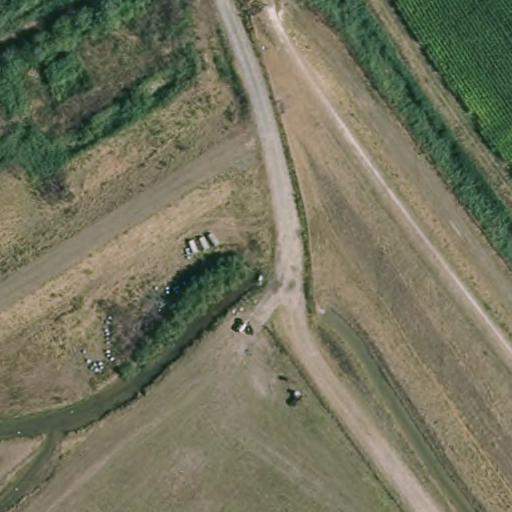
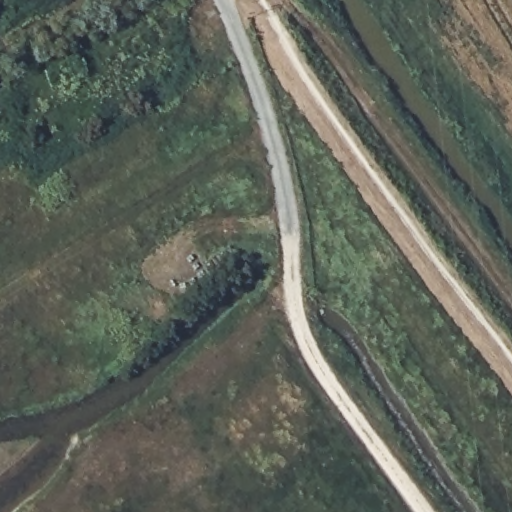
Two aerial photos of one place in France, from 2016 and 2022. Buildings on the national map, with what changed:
[]

